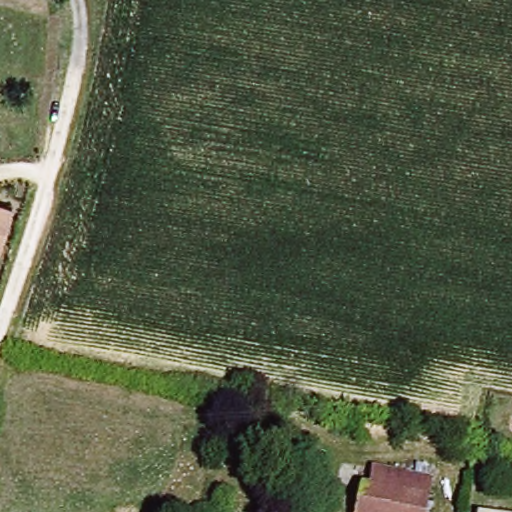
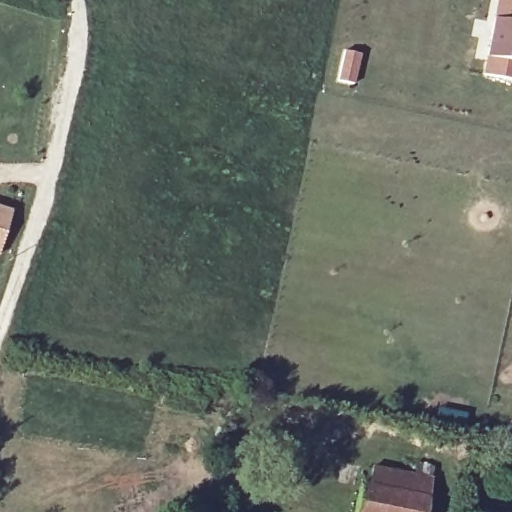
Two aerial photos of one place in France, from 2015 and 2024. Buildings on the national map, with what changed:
new [(481,74),(495,0),(512,0),(512,80),(481,74)]
unchanged [(0,234),(0,210),(8,213),(0,234)]
unchanged [(421,508),(361,499),(367,467),(426,476),(421,508)]
unchanged [(361,499),(421,508),(421,512),(351,512),(353,498),(361,499)]

